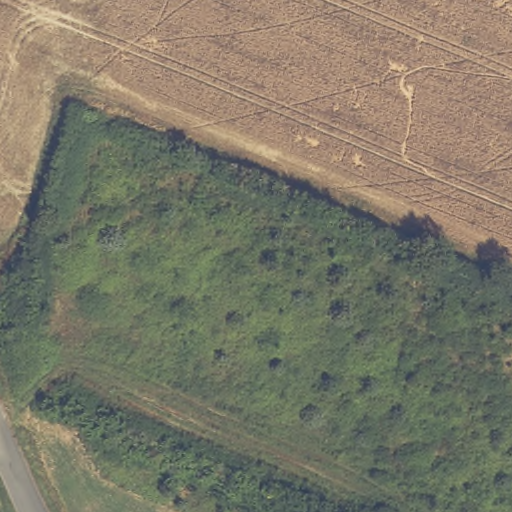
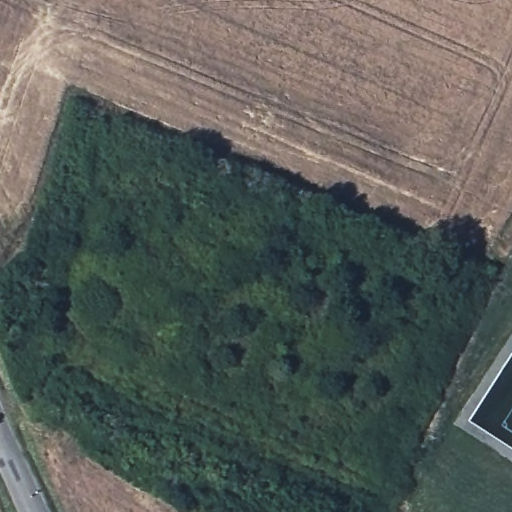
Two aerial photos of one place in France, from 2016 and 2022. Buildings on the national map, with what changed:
unchanged [(392,221),(383,217),(389,204),(397,207),(416,215),(411,229),(392,221)]

